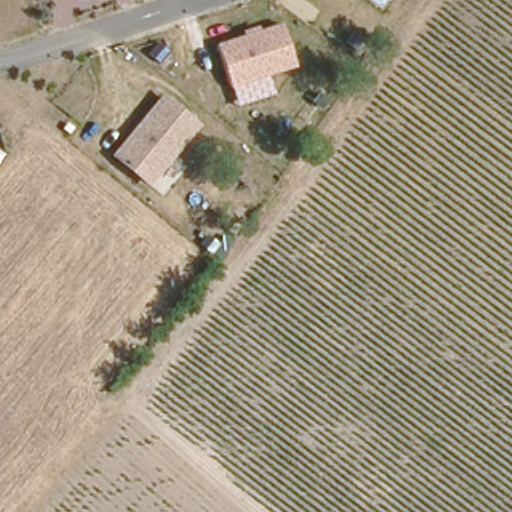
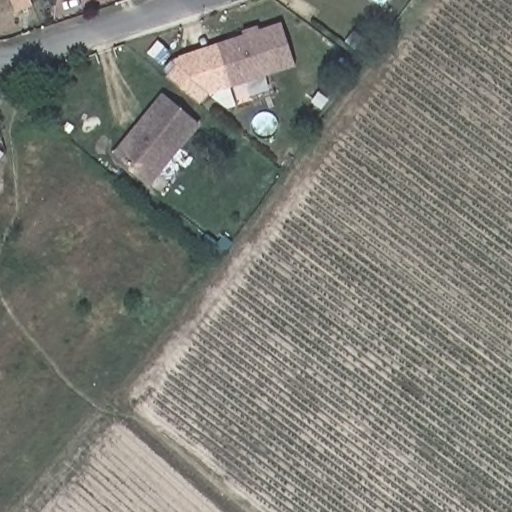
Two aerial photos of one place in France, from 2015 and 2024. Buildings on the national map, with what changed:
unchanged [(230,87),(217,43),(243,36),(242,31),(259,26),(260,31),(282,25),(294,69),(230,87)]
new [(230,87),(236,107),(227,110),(208,95),(200,106),(165,77),(166,74),(162,71),(170,61),(217,43),(230,87)]
unchanged [(162,98),(195,125),(148,182),(116,155),(162,98)]
unchanged [(60,122),(65,127),(60,132),(55,127),(60,122)]

